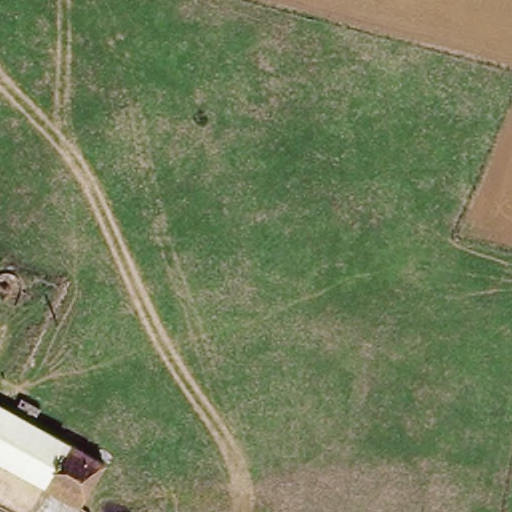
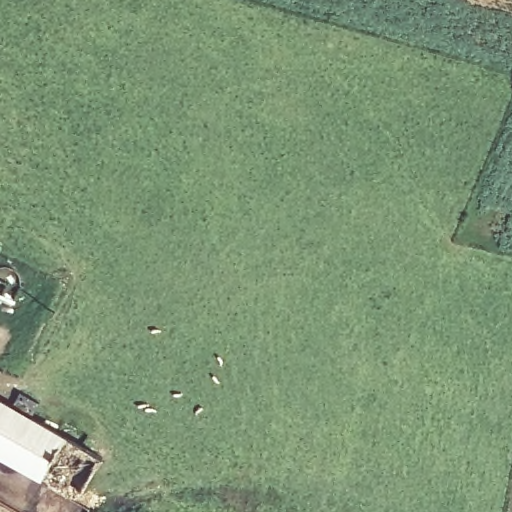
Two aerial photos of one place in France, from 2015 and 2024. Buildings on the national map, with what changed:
unchanged [(74,500),(0,457),(0,398),(97,456),(74,500)]

